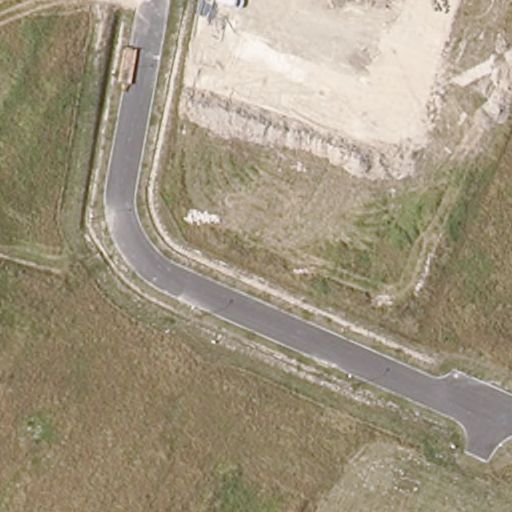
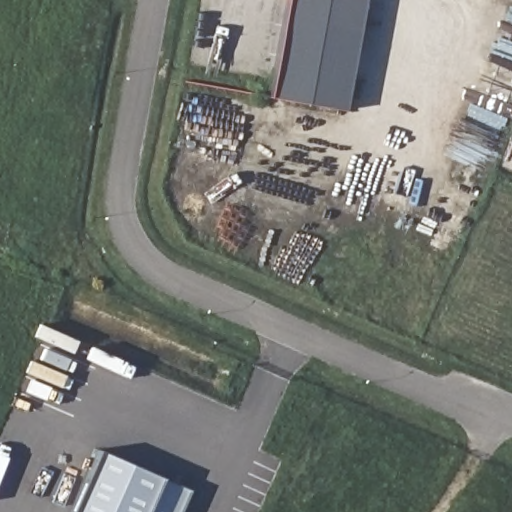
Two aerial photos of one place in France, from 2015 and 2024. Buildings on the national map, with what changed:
new [(365,0),(346,110),(269,96),(287,0),(365,0)]
new [(181,512),(73,512),(99,452),(190,492),(181,512)]

